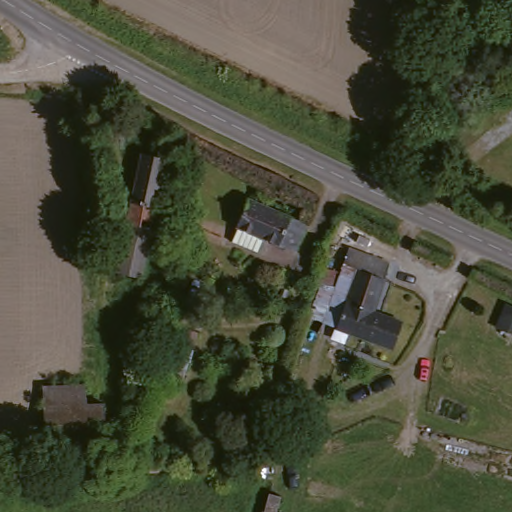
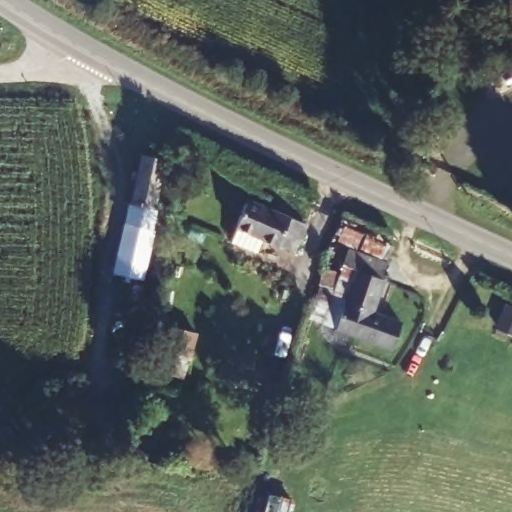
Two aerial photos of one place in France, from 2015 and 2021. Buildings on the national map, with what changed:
unchanged [(142,152),(164,158),(149,228),(126,222),(142,152)]
unchanged [(251,197),(311,221),(299,249),(267,236),(261,254),(233,242),(251,197)]
unchanged [(139,277),(114,272),(126,222),(149,228),(139,277)]
unchanged [(361,253),(386,261),(373,312),(403,320),(394,350),(339,333),(354,277),(361,253)]
unchanged [(339,333),(321,327),(336,270),(354,277),(339,333)]
unchanged [(496,334),(507,312),(512,314),(512,341),(496,334)]
unchanged [(198,321),(184,376),(158,369),(173,314),(198,321)]
unchanged [(86,386),(86,404),(108,404),(106,440),(48,440),(46,387),(86,386)]

